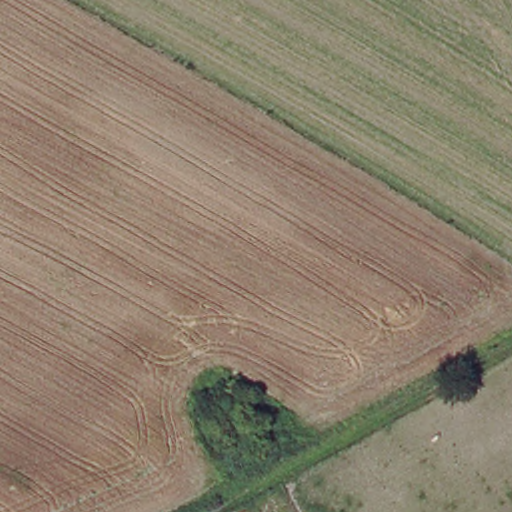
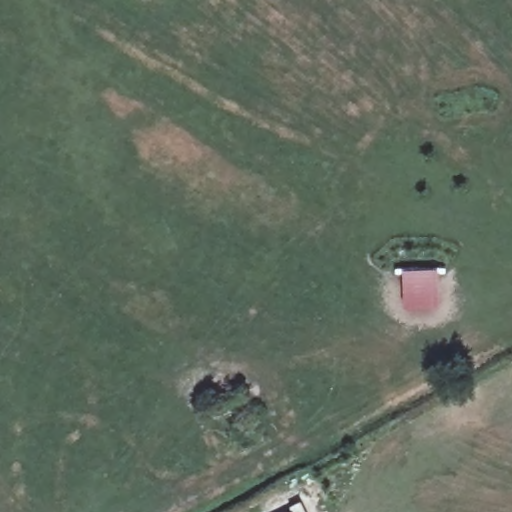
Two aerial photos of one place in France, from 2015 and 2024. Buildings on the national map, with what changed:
new [(439,268),(439,309),(402,310),(401,269),(439,268)]

